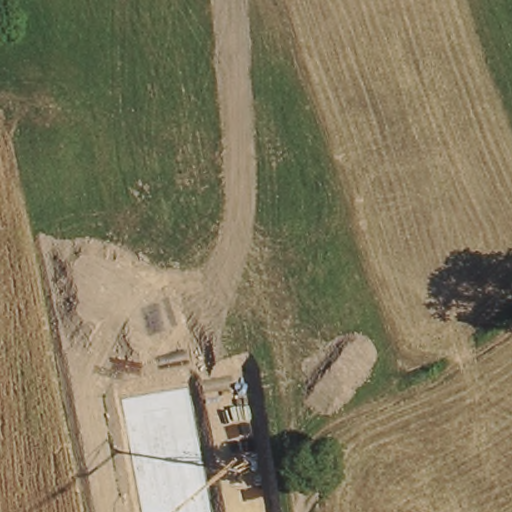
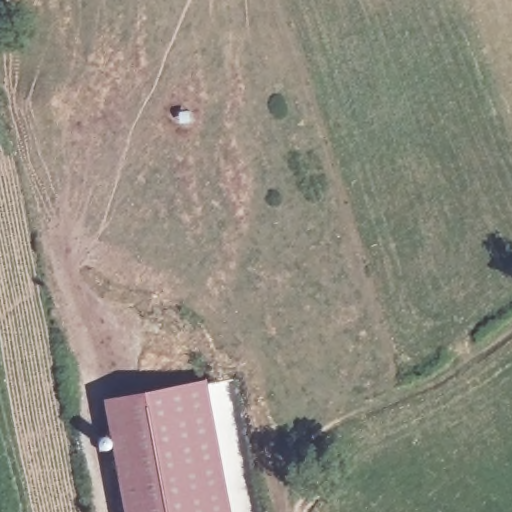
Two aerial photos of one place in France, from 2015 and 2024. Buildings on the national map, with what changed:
new [(103,397),(207,379),(231,512),(123,512),(103,397)]

